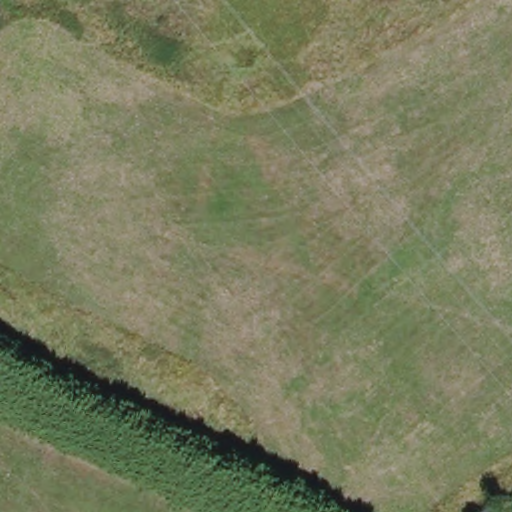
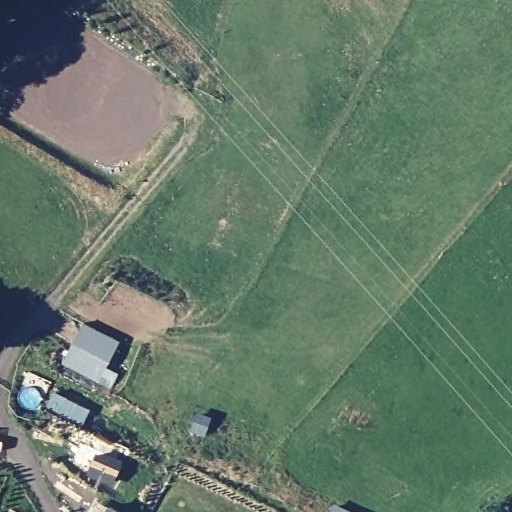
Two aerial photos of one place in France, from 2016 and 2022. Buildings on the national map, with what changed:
new [(106,367),(118,374),(111,388),(62,363),(85,322),(120,341),(106,367)]

